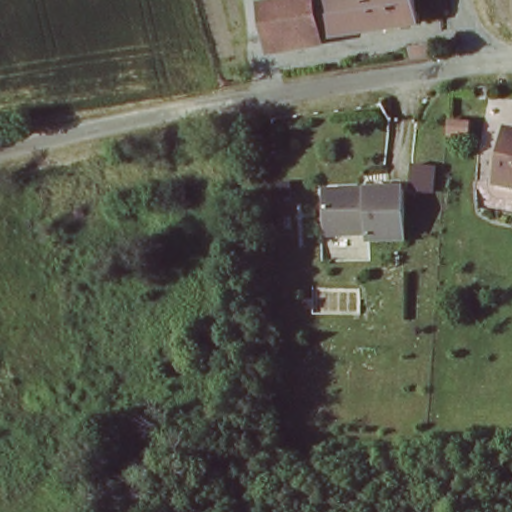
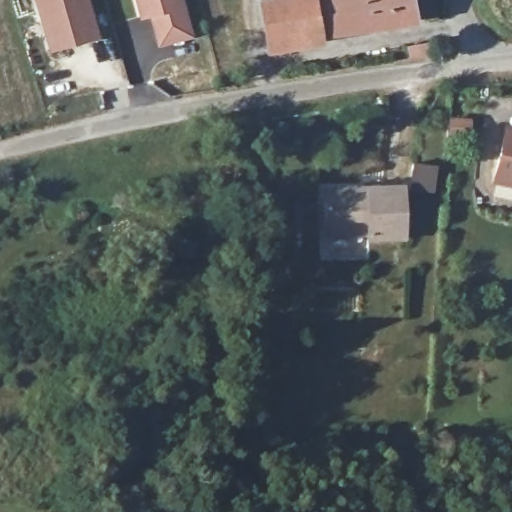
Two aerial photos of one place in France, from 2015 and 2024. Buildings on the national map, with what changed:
new [(100,37),(49,50),(35,0),(89,0),(100,37)]
new [(193,36),(158,45),(150,17),(140,19),(135,0),(184,0),(193,36)]
unchanged [(414,18),(268,37),(262,0),(411,0),(414,18)]
unchanged [(512,130),(512,186),(499,183),(510,130),(512,130)]
unchanged [(401,240),(365,241),(365,234),(323,235),(322,200),(321,191),(364,190),(400,189),(401,240)]

